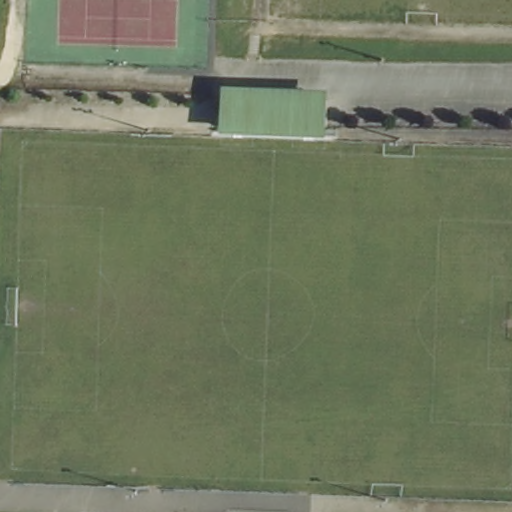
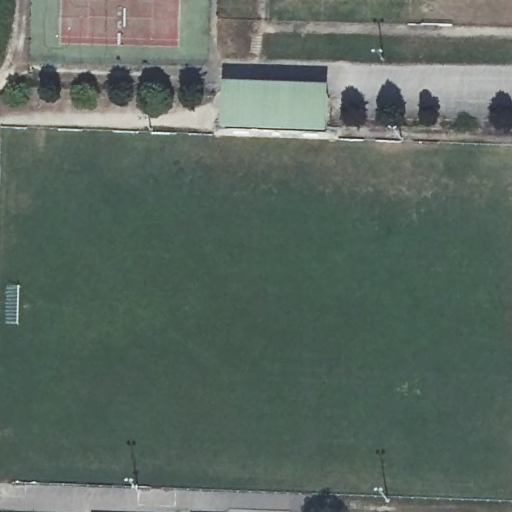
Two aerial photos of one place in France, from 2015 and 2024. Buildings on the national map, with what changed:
unchanged [(332,131),(227,127),(228,105),(228,99),(333,103),(333,110),(332,131)]

